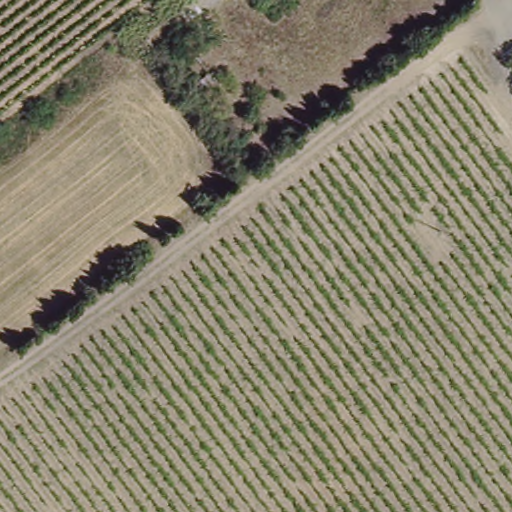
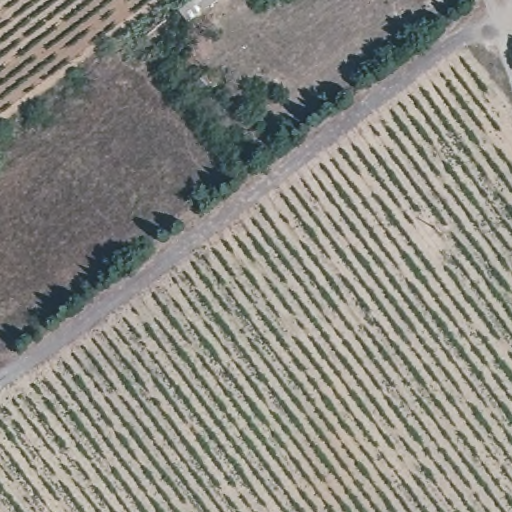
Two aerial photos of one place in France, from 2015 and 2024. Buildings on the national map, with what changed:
unchanged [(212,0),(221,0),(215,5),(212,0)]

